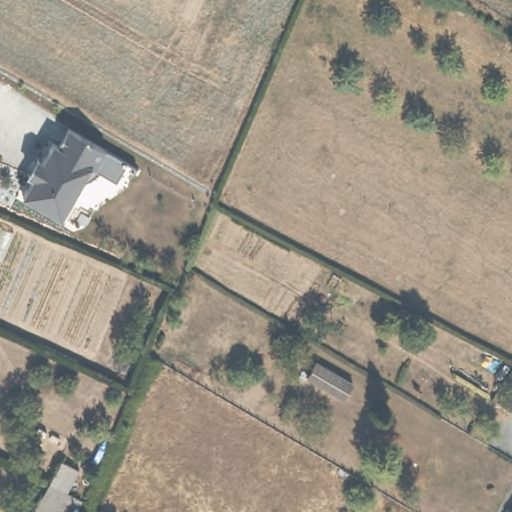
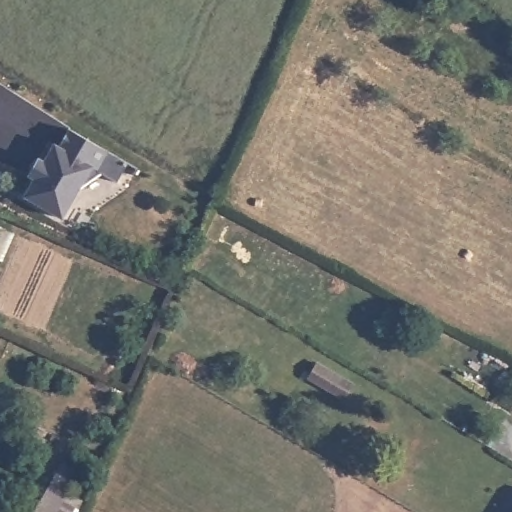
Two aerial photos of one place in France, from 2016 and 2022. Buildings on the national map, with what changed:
unchanged [(100,172),(78,190),(64,219),(24,197),(34,180),(26,177),(36,157),(44,162),(54,142),(60,144),(67,130),(106,151),(127,163),(117,181),(100,172)]
unchanged [(353,377),(345,394),(308,375),(317,356),(353,377)]
unchanged [(45,481),(57,455),(77,464),(66,491),(57,512),(40,512),(32,508),(45,481)]

